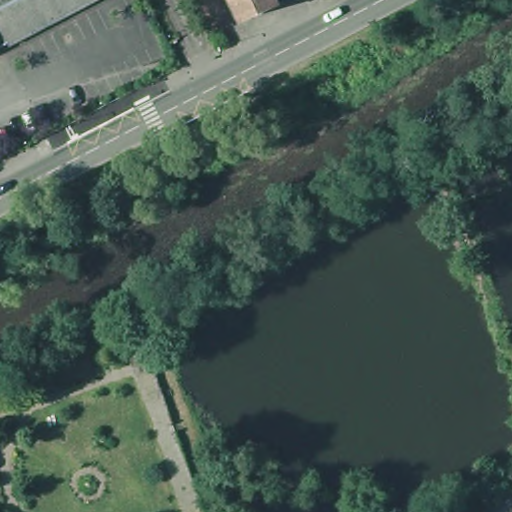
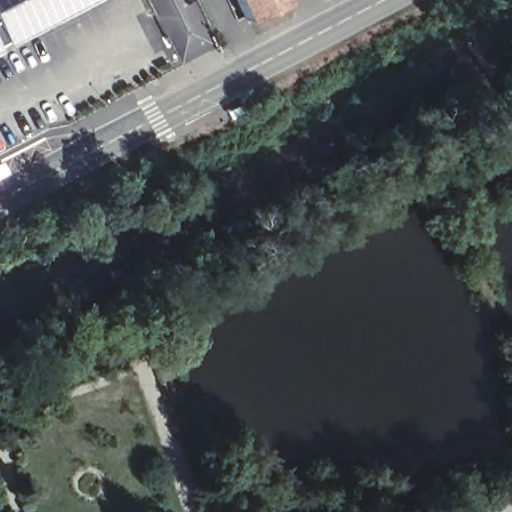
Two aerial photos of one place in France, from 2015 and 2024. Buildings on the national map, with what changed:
unchanged [(0,47),(0,0),(89,0),(0,47)]
unchanged [(251,15),(243,0),(281,0),(251,15)]
unchanged [(10,408),(0,412),(0,395),(4,394),(10,408)]

